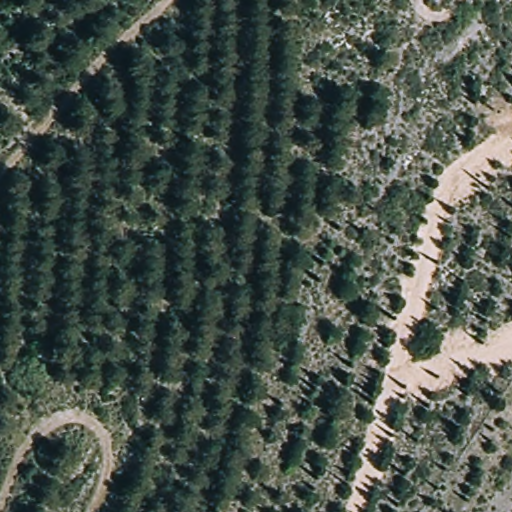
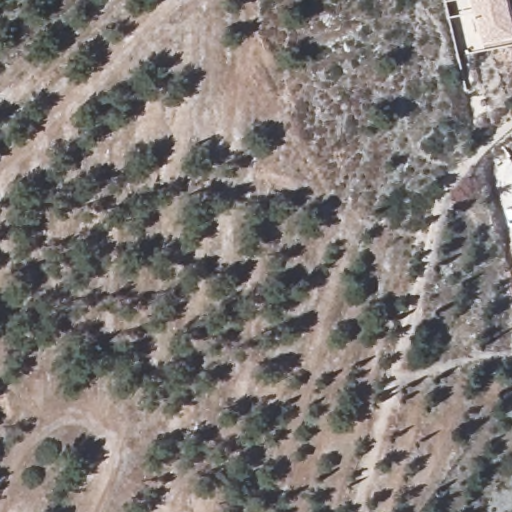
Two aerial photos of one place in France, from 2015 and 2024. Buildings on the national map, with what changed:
new [(512,21),(512,33),(480,41),(471,0),(507,0),(512,21)]
new [(507,0),(512,0),(512,21),(507,0)]
new [(512,33),(512,43),(482,50),(480,41),(512,33)]

